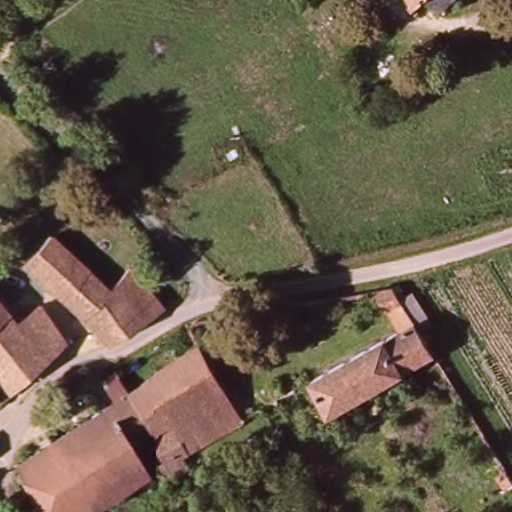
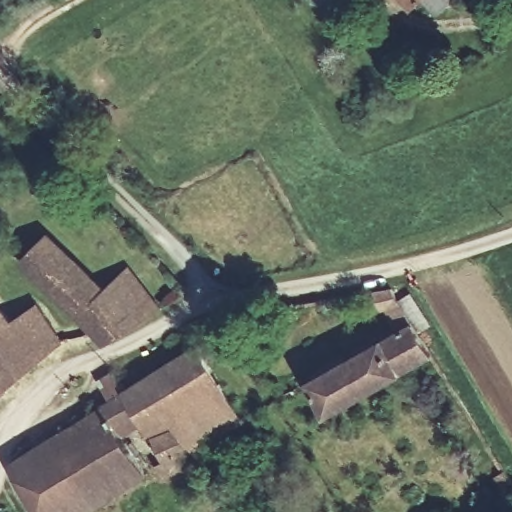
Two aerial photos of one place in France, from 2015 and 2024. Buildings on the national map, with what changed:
unchanged [(408,3),(405,0),(411,0),(408,3)]
unchanged [(438,10),(427,0),(449,0),(438,10)]
unchanged [(23,260),(48,234),(105,289),(129,269),(160,310),(106,345),(23,260)]
unchanged [(308,383),(394,335),(376,292),(389,289),(431,356),(325,415),(308,383)]
unchanged [(36,305),(57,346),(0,392),(0,305),(12,320),(36,305)]
unchanged [(171,416),(170,412),(146,424),(144,422),(123,386),(197,342),(239,415),(184,444),(172,420),(171,416)]
unchanged [(123,386),(144,422),(122,435),(100,400),(123,386)]
unchanged [(48,431),(100,400),(122,435),(144,471),(96,496),(88,500),(48,431)]
unchanged [(155,458),(161,454),(149,432),(172,420),(184,444),(179,447),(184,459),(161,471),(158,463),(155,458)]
unchanged [(36,512),(11,469),(5,456),(48,431),(88,500),(64,512),(36,512)]

